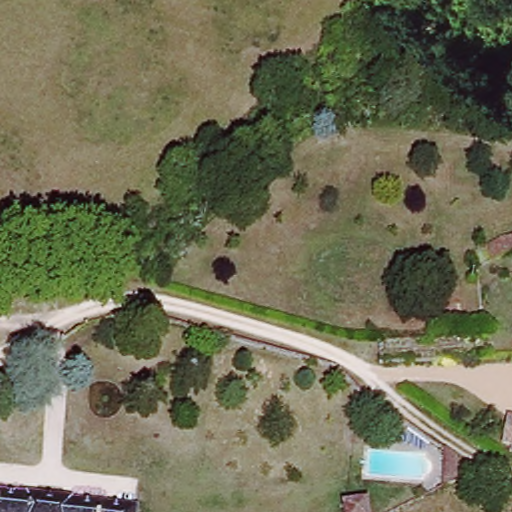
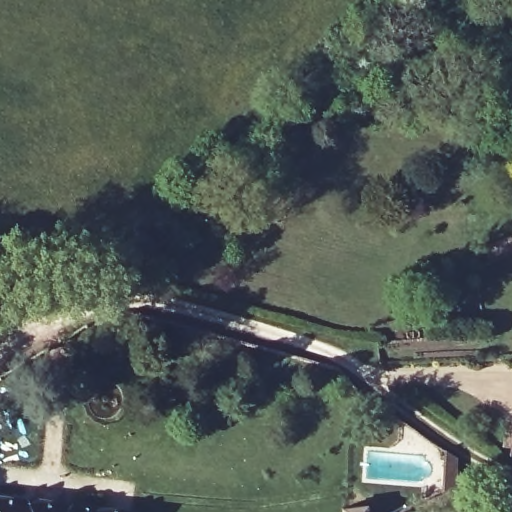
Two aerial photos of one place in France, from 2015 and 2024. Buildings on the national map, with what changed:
unchanged [(486,246),(512,236),(512,258),(493,264),(486,246)]
unchanged [(512,448),(501,448),(503,425),(512,425),(512,448)]
unchanged [(450,480),(435,489),(434,446),(449,454),(450,480)]
unchanged [(137,512),(0,512),(0,495),(137,508),(137,512)]

